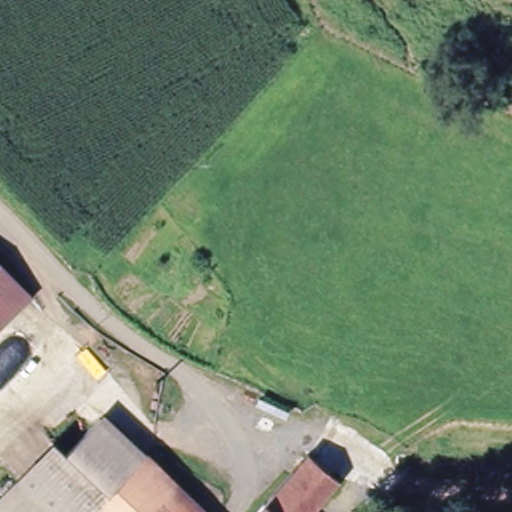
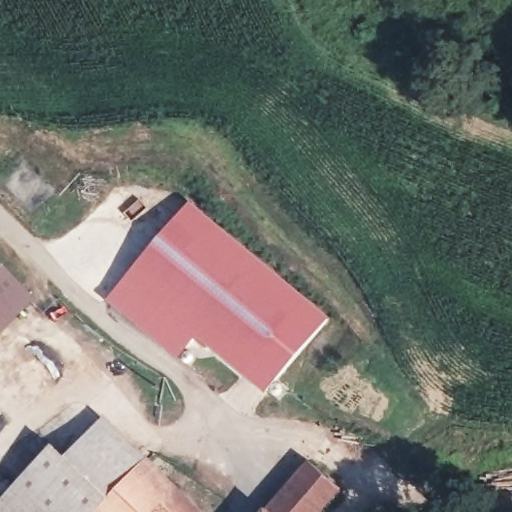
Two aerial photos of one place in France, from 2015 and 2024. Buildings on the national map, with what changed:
new [(187,208),(326,324),(265,396),(196,339),(177,362),(107,304),(187,208)]
unchanged [(29,294),(0,327),(0,268),(29,294)]
unchanged [(17,488),(52,448),(65,459),(99,422),(144,462),(147,458),(208,512),(44,512),(17,488)]
unchanged [(269,508),(273,511),(314,463),(347,491),(330,512),(266,512),(269,508)]
unchanged [(17,488),(44,512),(0,512),(0,506),(17,488)]

